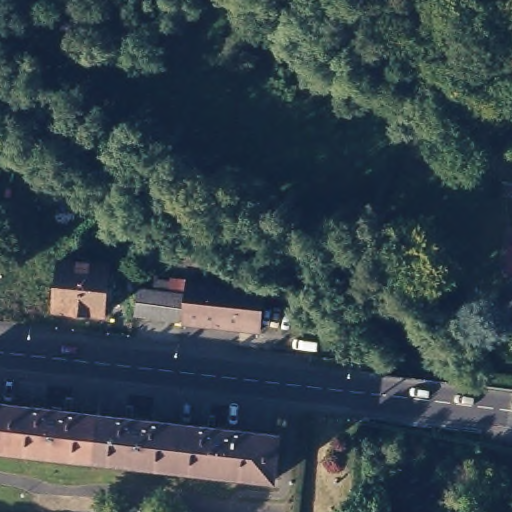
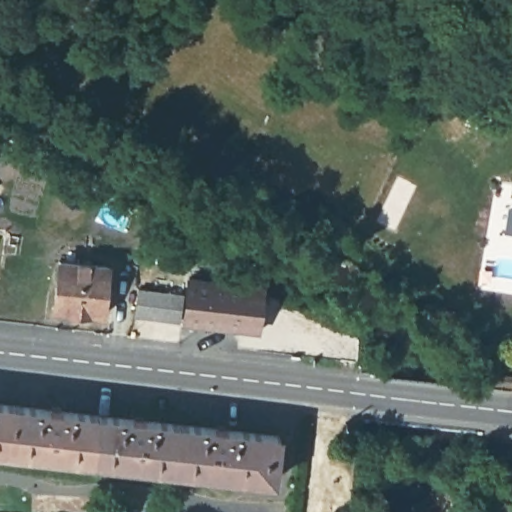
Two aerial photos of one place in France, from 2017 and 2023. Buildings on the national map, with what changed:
unchanged [(110,264),(108,285),(113,285),(113,293),(107,293),(105,313),(57,309),(62,260),(110,264)]
unchanged [(261,330),(187,322),(192,276),(266,283),(261,330)]
unchanged [(138,315),(142,287),(160,290),(161,278),(187,282),(186,293),(183,321),(138,315)]
unchanged [(274,474),(0,443),(0,398),(279,430),(274,474)]

